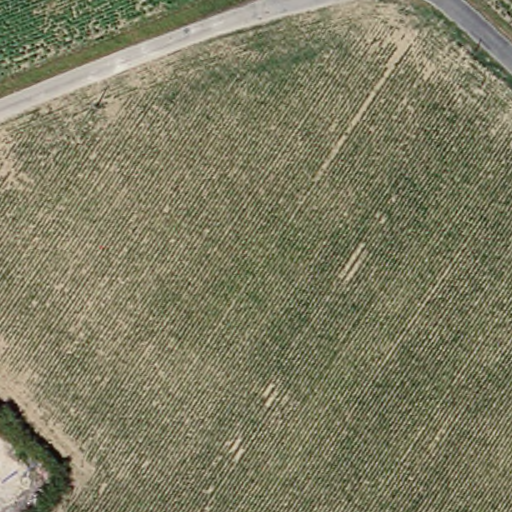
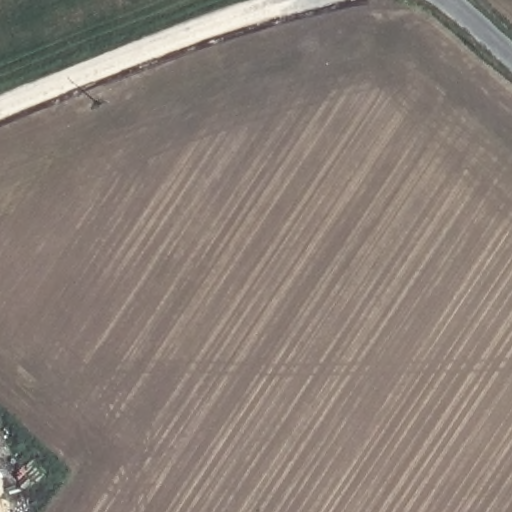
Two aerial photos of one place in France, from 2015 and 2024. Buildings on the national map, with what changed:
[]

